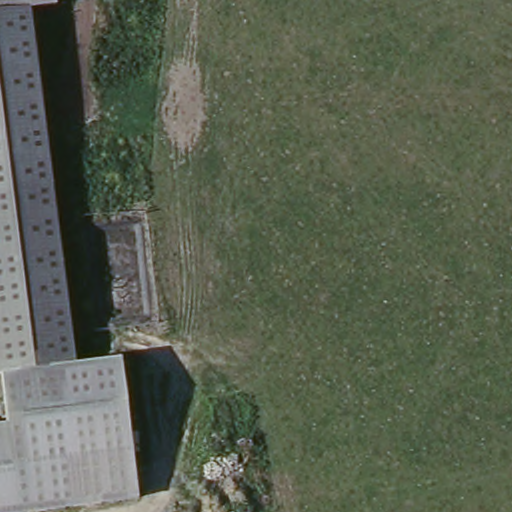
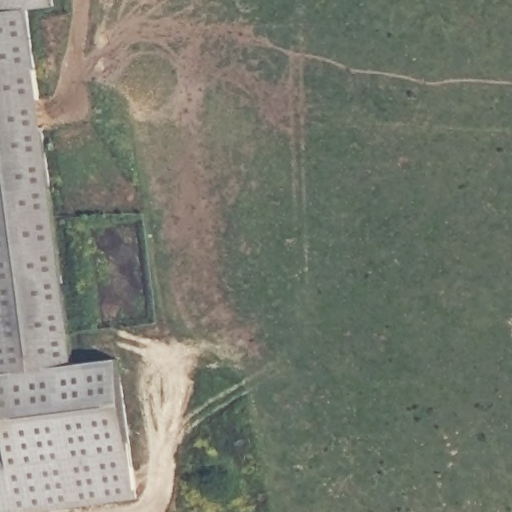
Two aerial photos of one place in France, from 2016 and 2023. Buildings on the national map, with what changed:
unchanged [(56,12),(30,15),(76,365),(120,360),(121,360),(138,503),(75,512),(0,512),(0,424),(4,423),(0,398),(0,0),(55,0),(56,12)]

